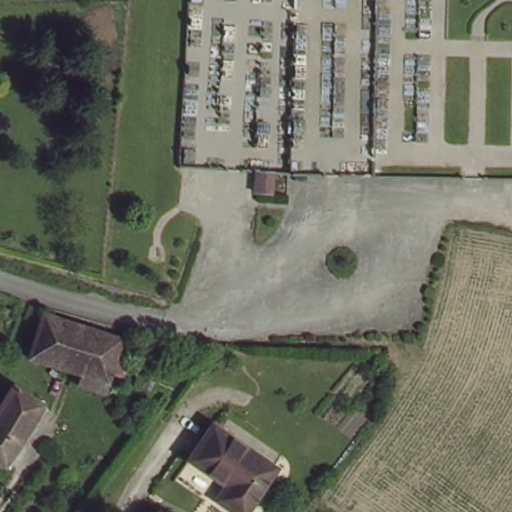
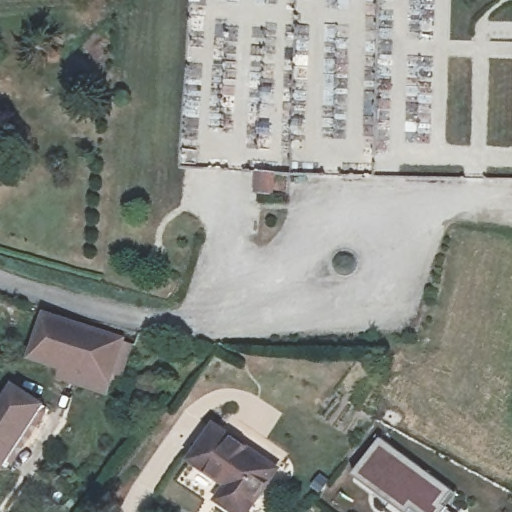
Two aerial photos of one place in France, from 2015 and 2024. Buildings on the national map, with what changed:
unchanged [(276,190),(258,189),(260,172),(278,174),(276,190)]
unchanged [(58,369),(30,361),(42,318),(70,325),(58,369)]
unchanged [(95,333),(83,377),(58,369),(70,325),(95,333)]
unchanged [(132,344),(125,371),(113,367),(108,385),(83,377),(95,333),(120,340),(132,344)]
unchanged [(158,389),(141,385),(145,375),(160,380),(158,389)]
unchanged [(44,402),(25,432),(6,462),(0,457),(0,410),(18,384),(44,402)]
unchanged [(242,512),(217,494),(228,479),(195,454),(218,422),(275,467),(242,512)]
new [(446,512),(417,512),(413,509),(412,512),(403,512),(353,476),(380,439),(458,496),(446,512)]

